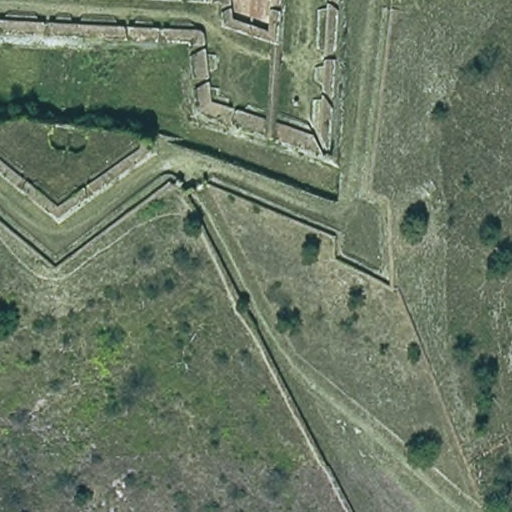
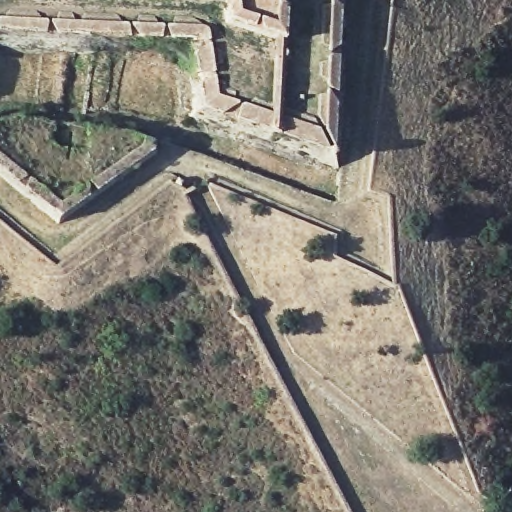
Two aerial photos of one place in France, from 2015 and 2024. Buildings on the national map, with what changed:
unchanged [(203,115),(195,41),(0,31),(0,0),(337,0),(327,154),(203,115)]
unchanged [(53,215),(0,177),(0,124),(21,122),(152,140),(53,215)]

